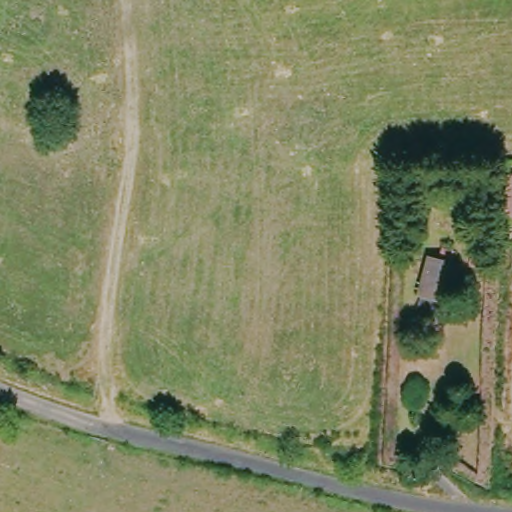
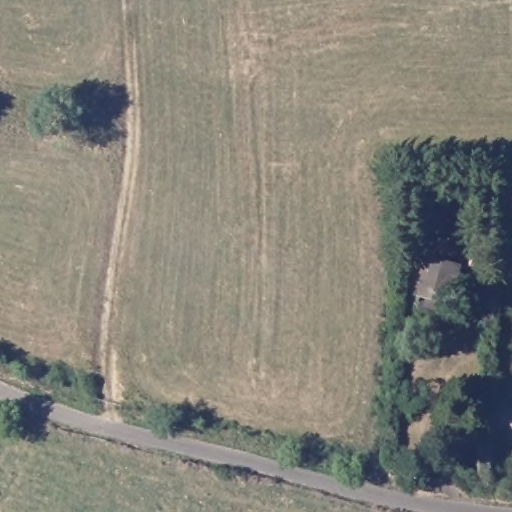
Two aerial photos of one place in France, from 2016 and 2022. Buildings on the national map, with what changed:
unchanged [(503,181),(512,181),(512,217),(503,217),(503,181)]
unchanged [(448,308),(415,304),(418,269),(428,268),(431,257),(444,257),(444,272),(452,273),(448,308)]

